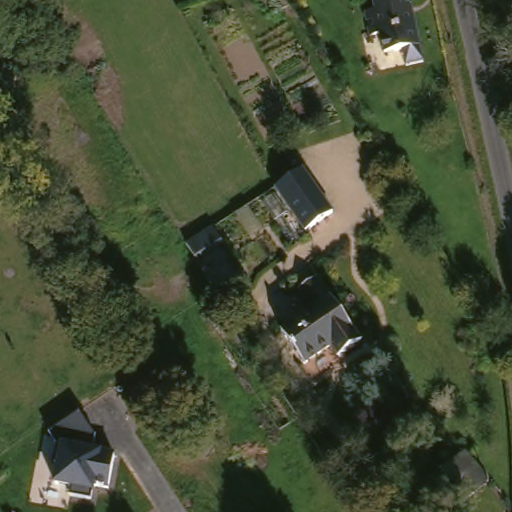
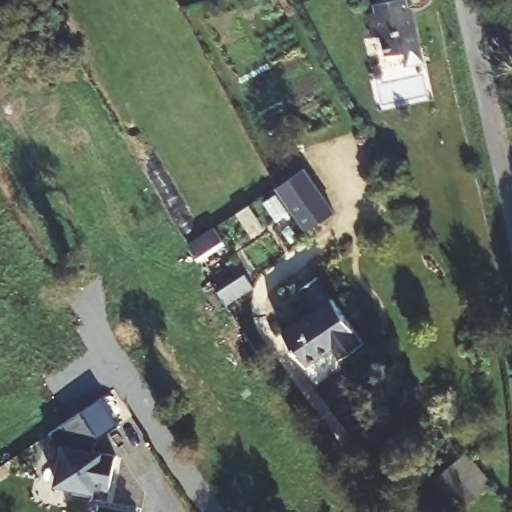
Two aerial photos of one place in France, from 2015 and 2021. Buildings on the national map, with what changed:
unchanged [(418,35),(423,34),(427,47),(386,61),(379,42),(373,44),(364,20),(378,15),(377,11),(384,8),(382,1),(386,0),(406,0),(418,35)]
unchanged [(304,173),(334,212),(302,234),(272,195),(304,173)]
unchanged [(195,250),(219,235),(228,250),(199,267),(191,253),(195,250)]
unchanged [(258,287),(228,306),(219,291),(249,273),(258,287)]
unchanged [(279,337),(314,314),(300,292),(317,281),(331,303),(360,347),(338,363),(329,352),(302,370),(279,337)]
unchanged [(121,422),(95,434),(94,450),(115,453),(109,490),(95,487),(94,494),(53,487),(58,462),(54,461),(57,442),(51,430),(105,396),(121,422)]
unchanged [(463,512),(462,512),(440,483),(464,460),(488,490),(463,512)]

